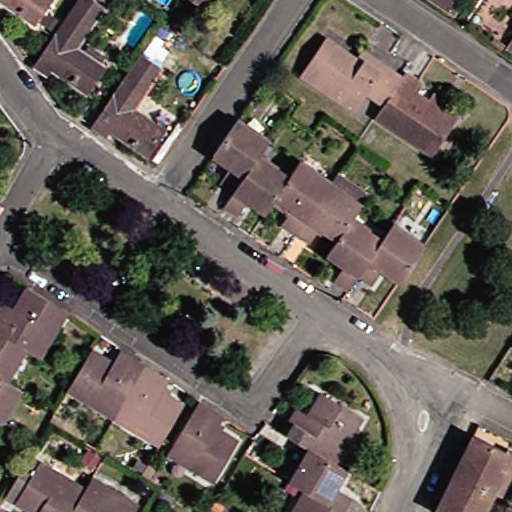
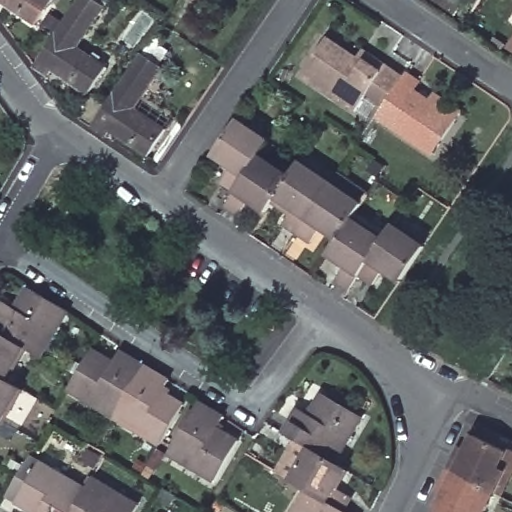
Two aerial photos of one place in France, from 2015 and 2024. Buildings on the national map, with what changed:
unchanged [(48,0),(47,2),(49,3),(30,30),(0,10),(0,0),(48,0)]
unchanged [(29,72),(77,0),(80,0),(99,13),(72,53),(101,72),(83,99),(53,79),(46,75),(42,80),(29,72)]
unchanged [(88,0),(109,0),(102,10),(88,0)]
unchanged [(187,0),(203,0),(198,7),(187,0)]
unchanged [(450,0),(452,1),(440,18),(412,0),(450,0)]
unchanged [(512,34),(512,55),(502,48),(512,34)]
unchanged [(349,118),(295,81),(321,42),(352,63),(358,54),(378,68),(398,81),(378,110),(361,99),(349,118)]
unchanged [(151,53),(147,58),(140,53),(143,47),(151,53)]
unchanged [(100,136),(87,127),(136,54),(157,68),(130,109),(160,129),(142,156),(111,135),(105,131),(100,136)]
unchanged [(415,87),(410,95),(424,104),(429,97),(457,116),(452,123),(427,161),(370,122),(378,110),(398,81),(401,77),(415,87)]
unchanged [(268,142),(258,156),(234,192),(220,183),(231,166),(214,155),(237,121),(268,142)]
unchanged [(290,177),(276,197),(266,212),(249,200),(238,216),(224,207),(234,192),(258,156),(290,177)]
unchanged [(330,183),(295,235),(281,225),(293,208),(276,197),(290,177),(299,163),(330,183)]
unchanged [(332,185),(339,176),(366,194),(360,204),(361,205),(351,219),(338,239),(321,227),(310,244),(295,235),(330,183),(332,185)]
unchanged [(382,240),(358,276),(348,291),(334,281),(345,265),(328,253),(338,239),(351,219),(382,240)]
unchanged [(392,226),(423,247),(400,281),(383,269),(372,285),(358,276),(382,240),(392,226)]
unchanged [(2,301),(15,308),(26,288),(69,313),(42,358),(25,348),(0,333),(0,306),(2,301)]
unchanged [(25,348),(6,381),(0,377),(0,333),(25,348)]
unchanged [(71,383),(89,354),(110,366),(115,357),(139,371),(109,422),(64,396),(71,383)]
unchanged [(161,391),(167,395),(165,399),(180,407),(155,449),(109,422),(139,371),(164,386),(161,391)]
unchanged [(6,381),(21,389),(20,389),(1,421),(0,421),(0,377),(6,381)]
unchanged [(292,414),(301,420),(315,397),(358,422),(331,468),(305,453),(278,437),(292,414)]
unchanged [(200,403),(224,417),(217,427),(239,440),(215,481),(169,455),(200,403)]
unchanged [(502,477),(495,493),(447,471),(455,456),(458,448),(465,451),(472,435),(507,451),(512,454),(512,464),(505,479),(502,477)]
unchanged [(331,468),(343,476),(333,494),(347,503),(342,512),(330,512),(300,494),(285,486),(305,453),(331,468)]
unchanged [(11,505),(0,498),(14,475),(25,456),(36,462),(81,489),(68,512),(23,512),(11,505)]
unchanged [(485,512),(436,512),(443,496),(437,493),(441,485),(447,471),(495,493),(485,512)]
unchanged [(81,489),(88,478),(134,505),(129,512),(68,512),(81,489)]
unchanged [(164,502),(158,499),(163,489),(170,493),(164,502)]
unchanged [(330,512),(290,512),(300,494),(330,512)]

